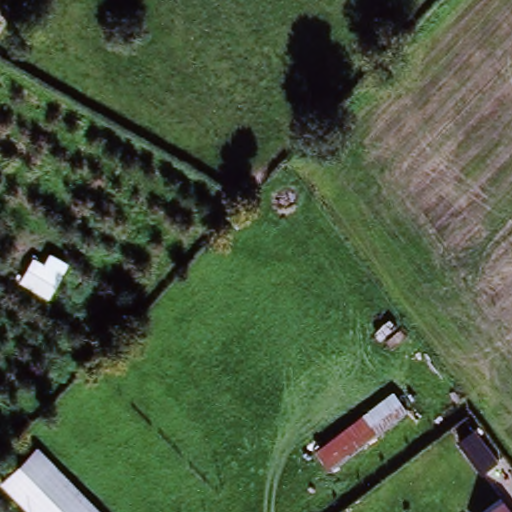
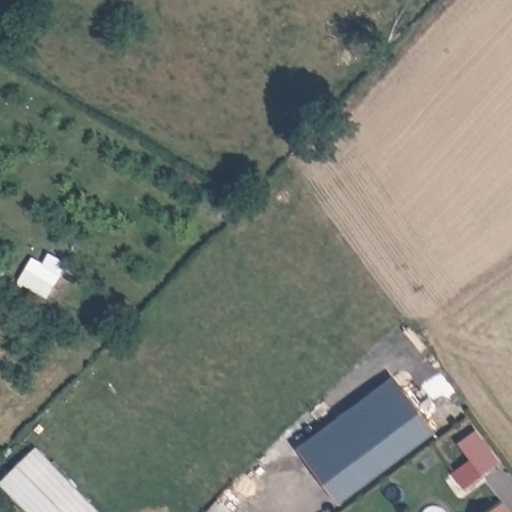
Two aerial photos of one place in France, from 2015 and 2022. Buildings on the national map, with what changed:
new [(300,446),(394,376),(437,433),(342,504),(300,446)]
demolished [(309,453),(389,396),(404,416),(324,474),(309,453)]
new [(472,460),(459,445),(476,432),(499,464),(463,489),(453,474),(472,460)]
unchanged [(96,512),(23,512),(1,491),(35,455),(96,512)]
unchanged [(512,511),(512,512),(492,512),(505,502),(512,511)]

